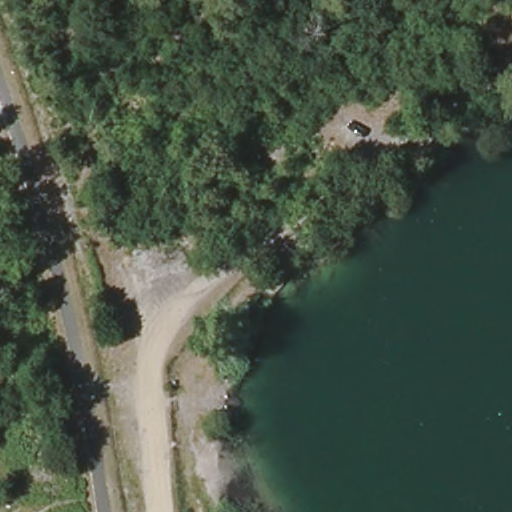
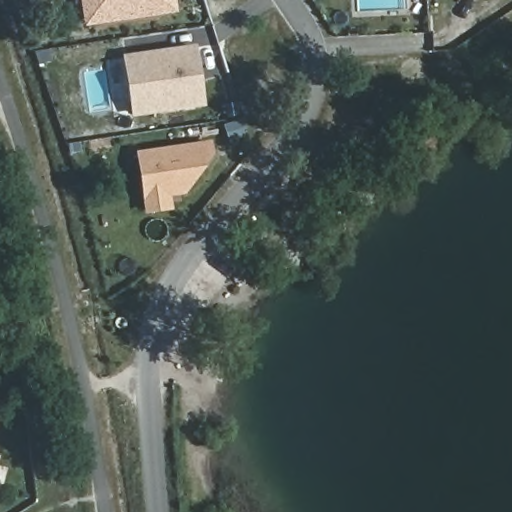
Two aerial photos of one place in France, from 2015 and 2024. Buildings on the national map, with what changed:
new [(99,23),(87,25),(84,0),(96,0),(99,23)]
new [(99,23),(96,0),(172,0),(174,12),(99,23)]
new [(202,106),(134,116),(125,60),(194,50),(202,106)]
new [(189,188),(167,191),(170,210),(147,213),(139,155),(209,145),(211,158),(189,188)]
new [(168,196),(167,191),(189,188),(185,194),(168,196)]

